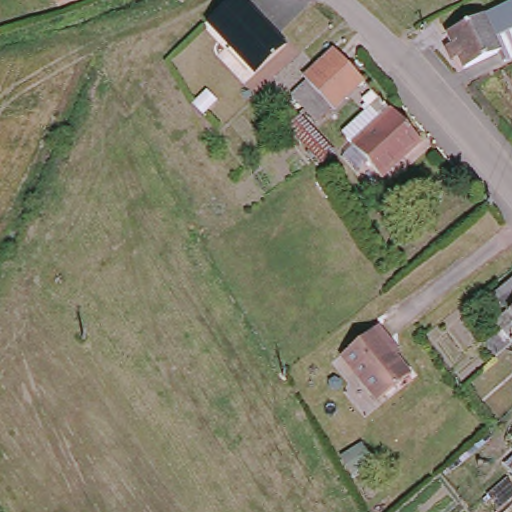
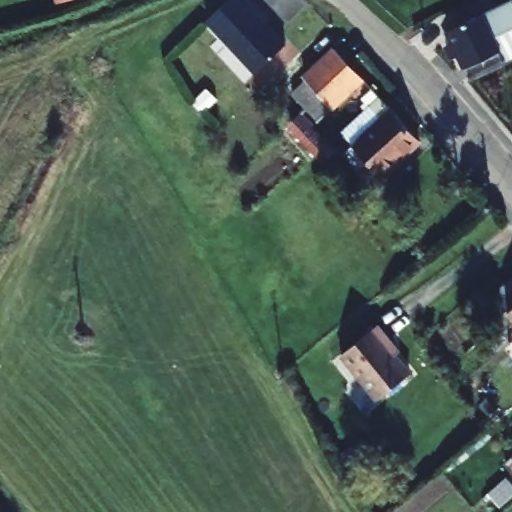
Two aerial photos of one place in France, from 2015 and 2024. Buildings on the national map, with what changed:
unchanged [(60,0),(73,0),(62,5),(60,0)]
unchanged [(252,4),(288,45),(260,75),(210,21),(212,19),(232,0),(251,0),(253,3),(252,4)]
unchanged [(452,49),(447,34),(512,2),(512,23),(490,33),(498,49),(512,42),(512,59),(503,64),(498,55),(464,71),(458,60),(451,61),(446,52),(452,49)]
unchanged [(365,83),(315,131),(340,157),(327,169),(290,129),(307,113),(300,105),(315,90),(307,80),(338,52),(365,83)]
unchanged [(351,142),(389,109),(419,141),(380,176),(351,142)]
unchanged [(490,344),(501,334),(495,325),(498,321),(510,311),(497,293),(512,280),(512,344),(500,355),(490,344)]
unchanged [(417,369),(378,399),(347,357),(384,324),(417,369)]
unchanged [(512,452),(512,471),(502,460),(512,452)]

